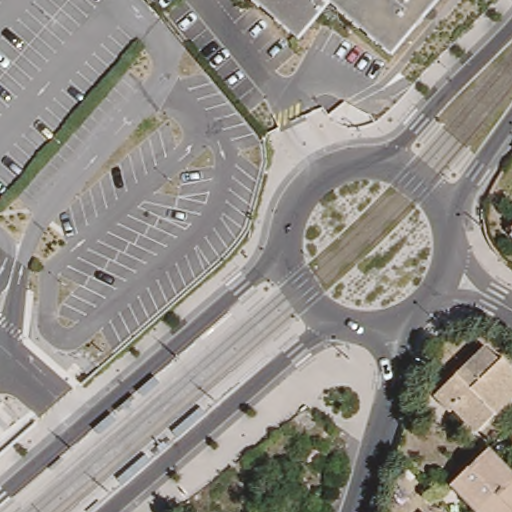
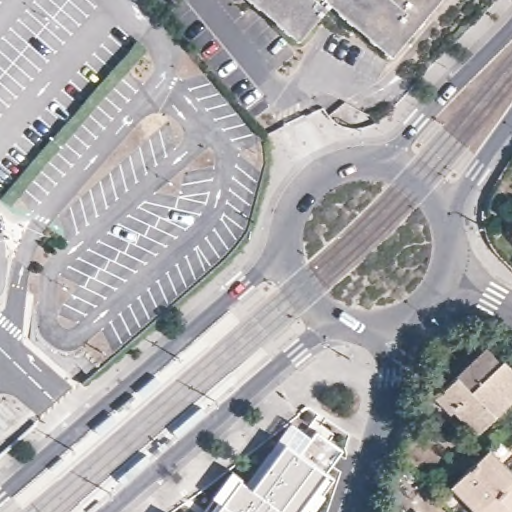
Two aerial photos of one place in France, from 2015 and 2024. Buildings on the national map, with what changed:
unchanged [(335,2),(304,38),(260,0),(442,0),(395,55),(335,2)]
unchanged [(460,407),(456,410),(441,395),(491,346),(505,360),(508,357),(512,361),(512,401),(481,431),(460,407)]
new [(231,470),(245,479),(280,436),(285,442),(297,450),(315,429),(341,449),(322,470),(326,472),(298,512),(201,512),(231,470)]
unchanged [(494,442),(512,461),(512,477),(483,504),(457,477),(494,442)]
unchanged [(512,477),(512,512),(491,512),(483,504),(512,477)]

